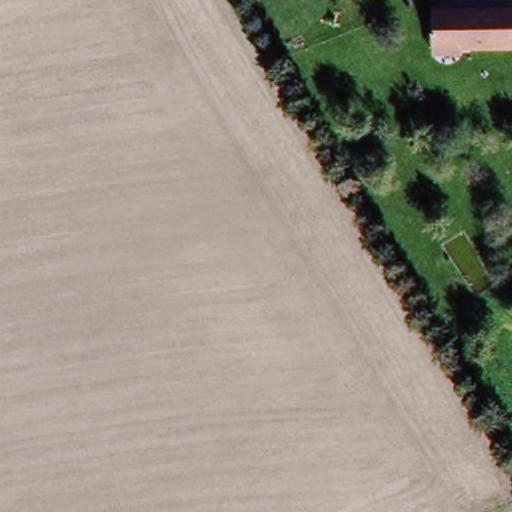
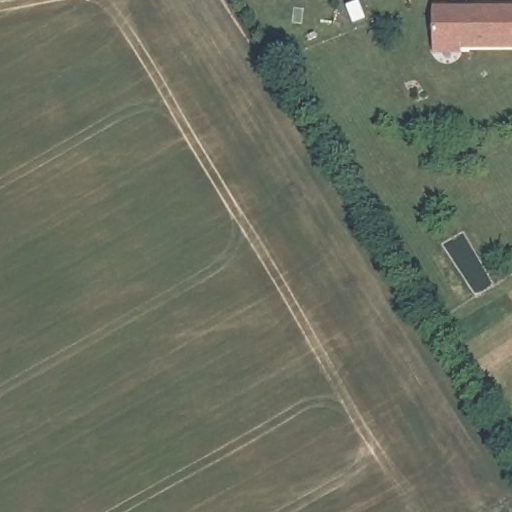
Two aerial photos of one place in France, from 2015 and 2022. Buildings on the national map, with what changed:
unchanged [(512,5),(512,48),(458,47),(456,54),(429,52),(431,2),(512,5)]

